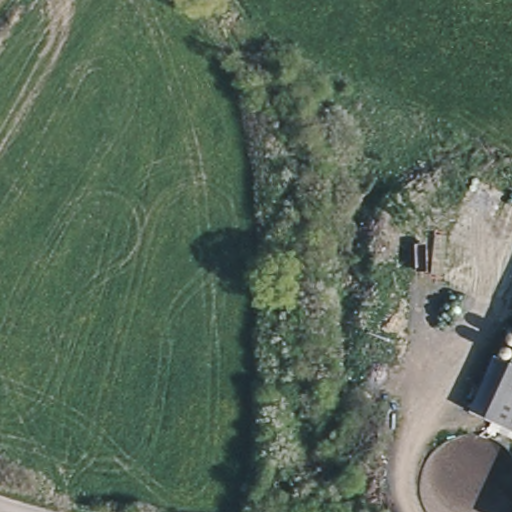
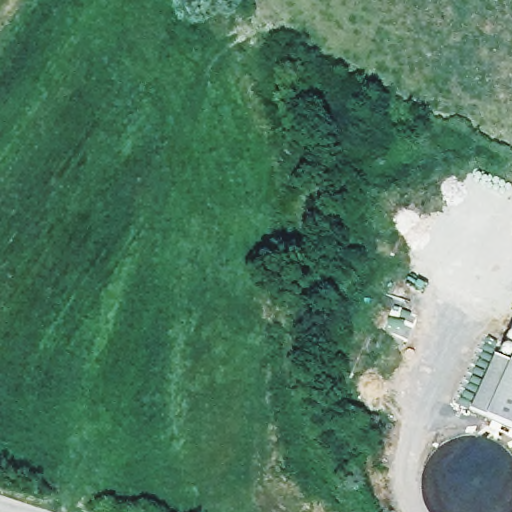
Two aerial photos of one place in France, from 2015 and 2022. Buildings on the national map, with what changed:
unchanged [(512,366),(512,431),(468,412),(491,357),(512,366)]

